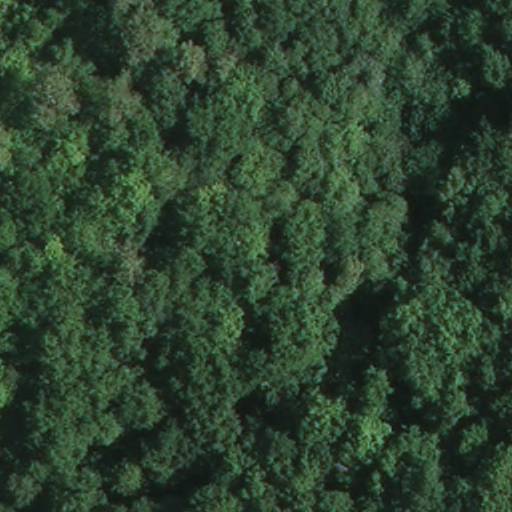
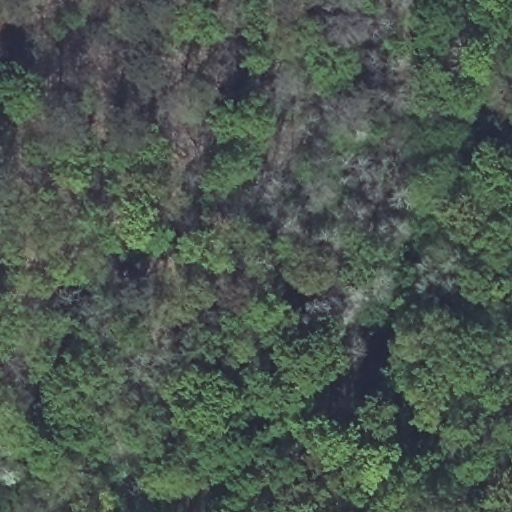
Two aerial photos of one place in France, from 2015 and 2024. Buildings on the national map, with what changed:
[]

